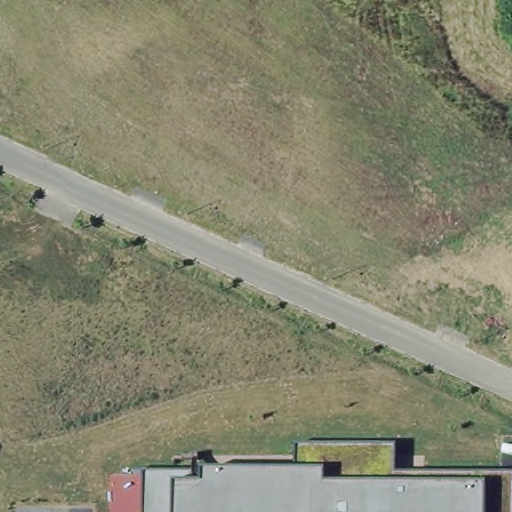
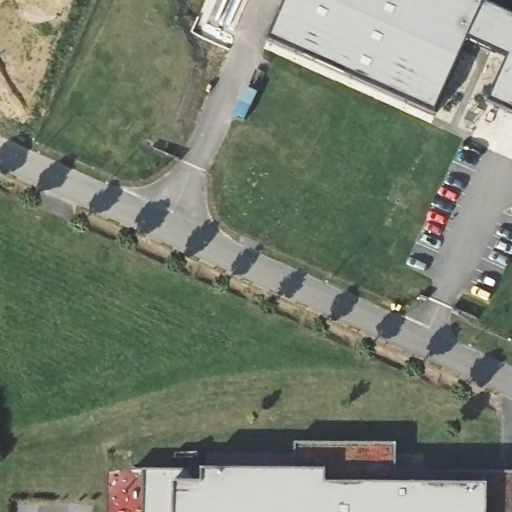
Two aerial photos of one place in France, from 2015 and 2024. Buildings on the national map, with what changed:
new [(490,0),(512,9),(512,116),(486,104),(506,59),(468,42),(434,117),(266,41),(283,0),(490,0)]
unchanged [(145,470),(202,470),(205,471),(294,471),(294,467),(294,446),(394,446),(395,473),(512,474),(512,512),(144,512),(145,470)]

